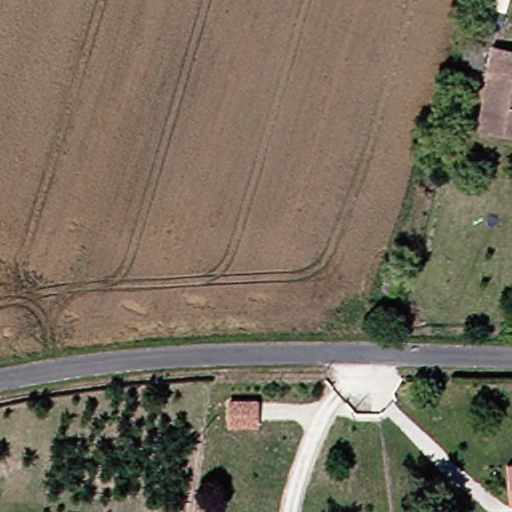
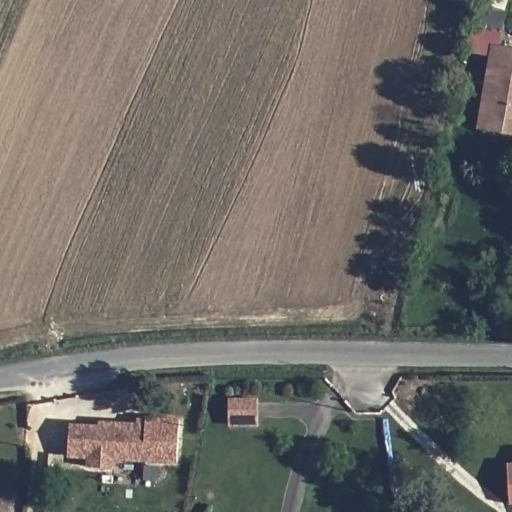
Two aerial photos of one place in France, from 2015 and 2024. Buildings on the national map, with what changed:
unchanged [(512,130),(486,126),(503,46),(512,47),(512,130)]
unchanged [(228,426),(228,421),(228,401),(255,400),(255,420),(255,425),(228,426)]
new [(97,428),(97,423),(135,426),(135,420),(144,420),(178,422),(175,463),(113,459),(112,469),(87,468),(87,458),(67,457),(68,426),(97,428)]
unchanged [(512,505),(510,506),(507,466),(512,466),(512,505)]

